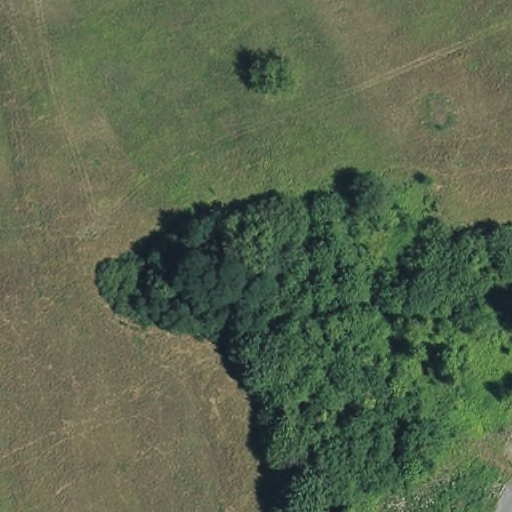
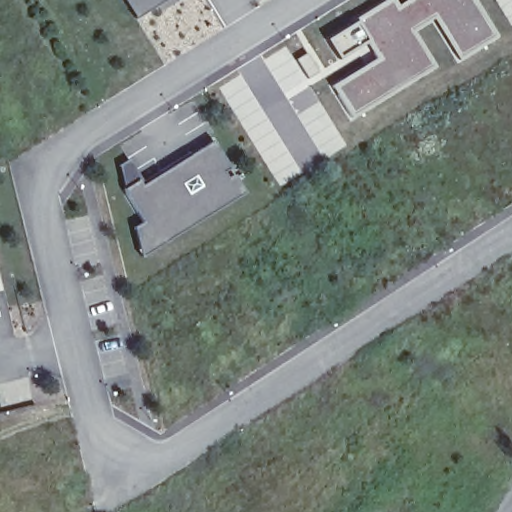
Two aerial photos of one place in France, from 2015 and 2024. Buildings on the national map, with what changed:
new [(136,17),(125,0),(163,0),(136,17)]
new [(384,0),(477,0),(497,39),(349,120),(328,86),(350,75),(317,40),(384,0)]
new [(126,194),(125,187),(138,178),(142,185),(213,139),(230,166),(224,170),(227,177),(234,173),(245,191),(163,242),(142,255),(134,225),(143,221),(126,194)]

